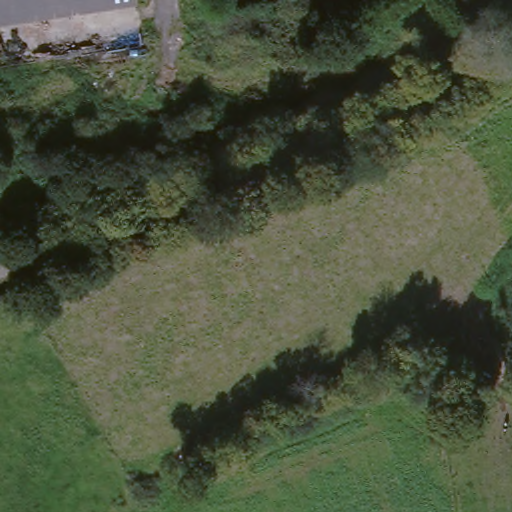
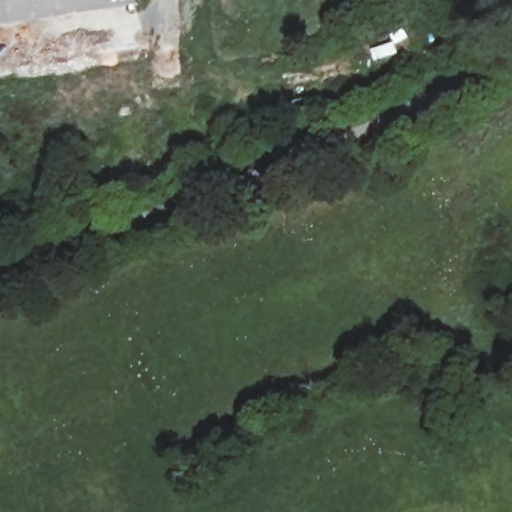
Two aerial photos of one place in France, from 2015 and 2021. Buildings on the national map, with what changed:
unchanged [(0,23),(0,0),(124,0),(125,5),(101,9),(0,23)]
unchanged [(405,0),(437,0),(457,43),(411,61),(380,12),(405,0)]

